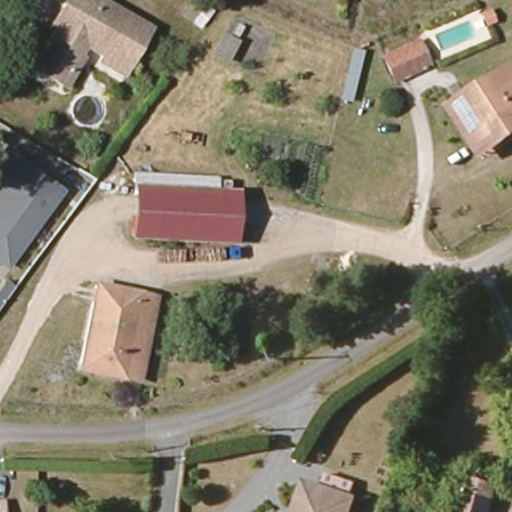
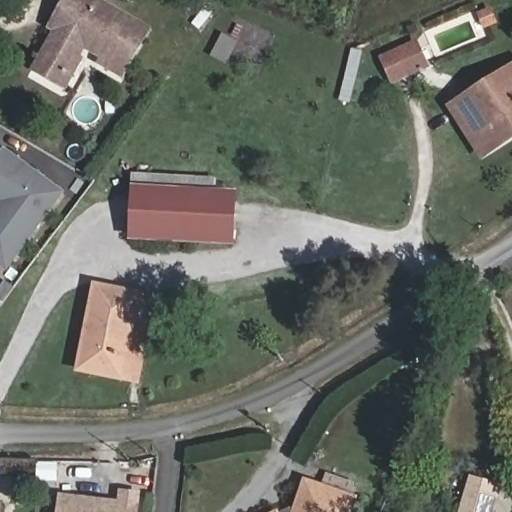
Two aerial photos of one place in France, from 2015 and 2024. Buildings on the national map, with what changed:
unchanged [(113,46),(89,31),(82,43),(86,45),(70,74),(44,59),(55,38),(49,35),(60,15),(69,0),(97,0),(102,3),(98,11),(147,38),(135,58),(131,65),(109,52),(113,46)]
unchanged [(381,57),(404,47),(413,43),(423,66),(414,70),(391,80),(381,57)]
unchanged [(479,149),(452,108),(512,69),(512,139),(484,156),(479,149)]
unchanged [(6,271),(0,266),(0,190),(20,162),(61,191),(6,271)]
unchanged [(213,179),(212,194),(234,196),(230,243),(131,233),(136,172),(213,179)]
unchanged [(131,381),(121,380),(78,371),(94,289),(137,297),(147,299),(131,381)]
unchanged [(496,489),(488,512),(458,512),(470,480),(496,489)]
unchanged [(356,512),(303,512),(311,488),(358,505),(356,512)]
new [(140,512),(59,512),(60,494),(118,501),(119,490),(142,492),(140,512)]

